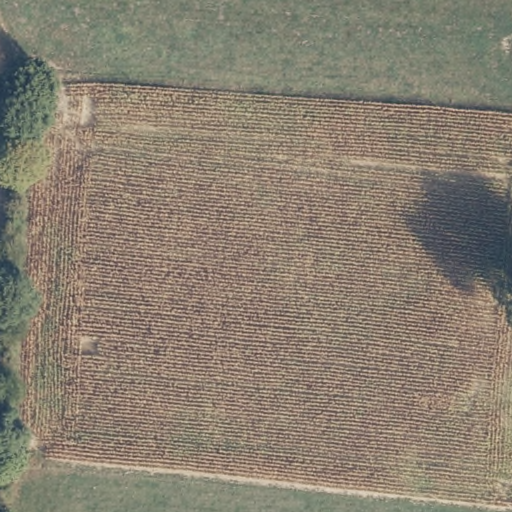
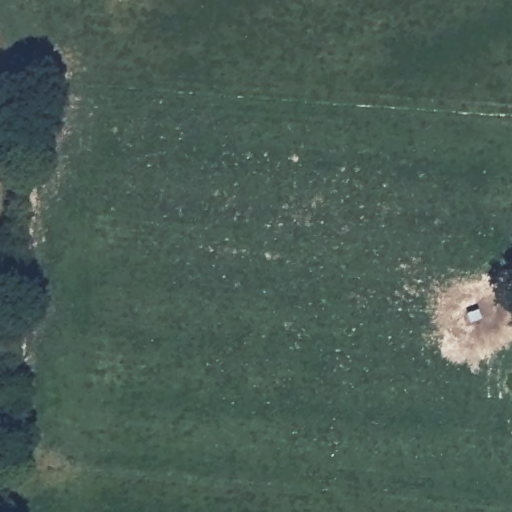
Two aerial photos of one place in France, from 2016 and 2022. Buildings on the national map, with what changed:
[]

